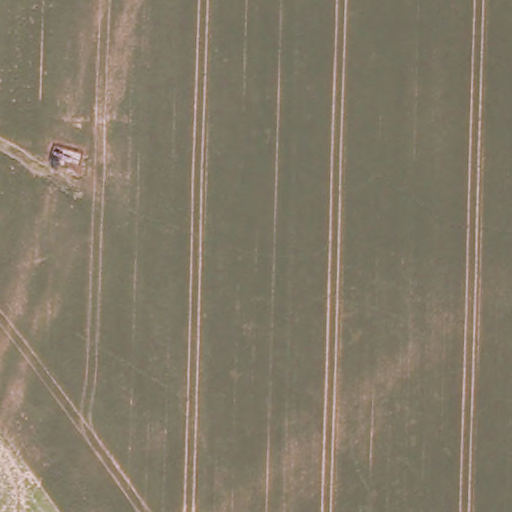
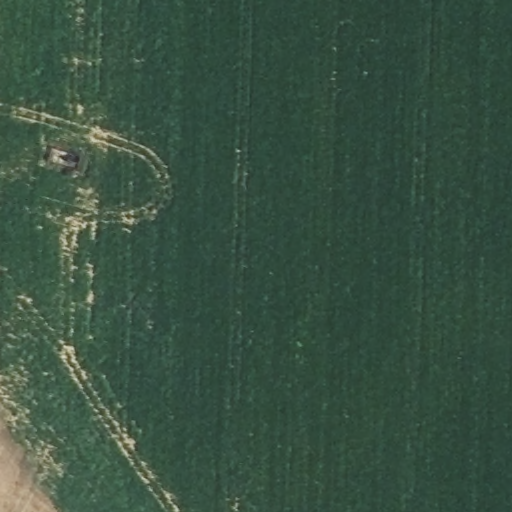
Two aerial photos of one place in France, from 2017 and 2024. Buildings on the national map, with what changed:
unchanged [(77,164),(91,169),(82,192),(69,186),(77,164)]

